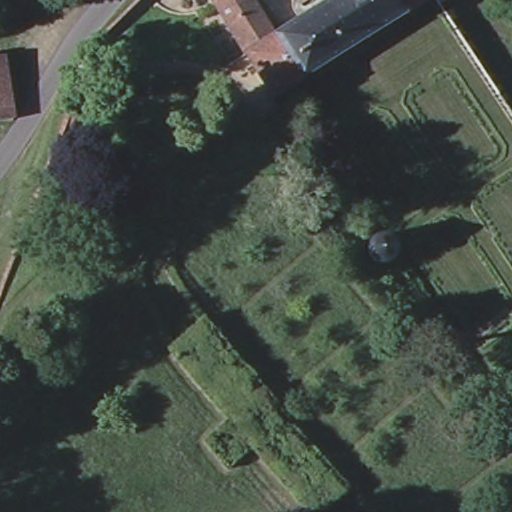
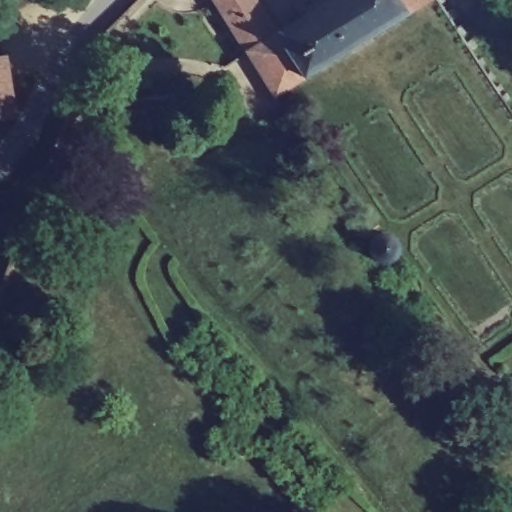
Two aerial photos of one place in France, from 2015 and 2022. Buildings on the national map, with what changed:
unchanged [(244,52),(210,0),(250,0),(272,34),(244,52)]
unchanged [(424,0),(273,97),(244,52),(272,34),(326,0),(424,0)]
unchanged [(2,52),(12,119),(0,121),(0,52),(2,52)]
unchanged [(383,251),(384,249),(386,246),(388,244),(390,242),(392,242),(395,241),(398,241),(400,241),(403,242),(405,243),(407,245),(409,247),(410,250),(411,252),(411,255),(411,257),(410,260),(408,262),(406,265),(404,266),(402,267),(399,268),(396,268),(394,268),(391,267),(389,266),(387,264),(385,262),(384,259),(383,257),(383,254),(383,251)]
unchanged [(509,415),(512,413),(512,419),(509,415)]

